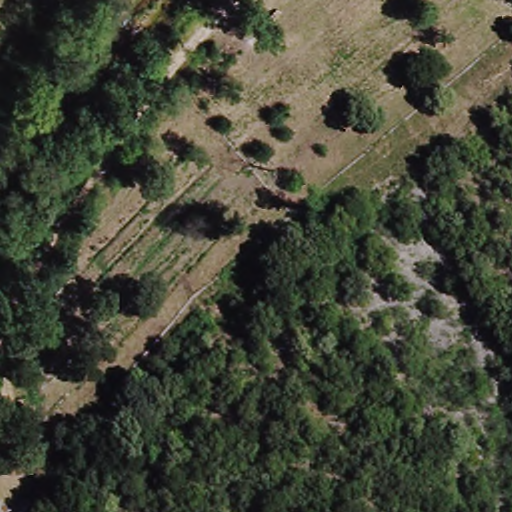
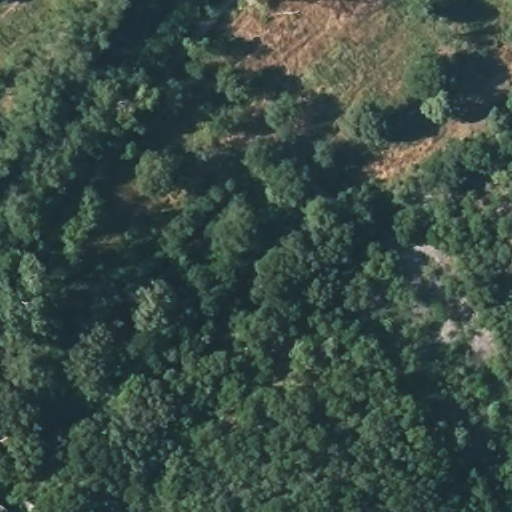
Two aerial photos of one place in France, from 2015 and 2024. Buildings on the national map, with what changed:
unchanged [(13,512),(0,512),(0,502),(15,509),(13,512)]

